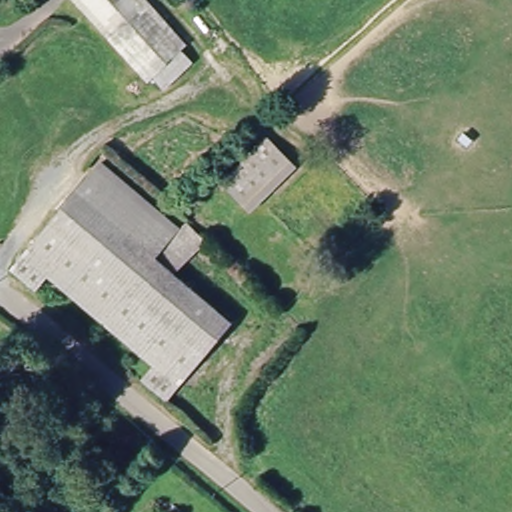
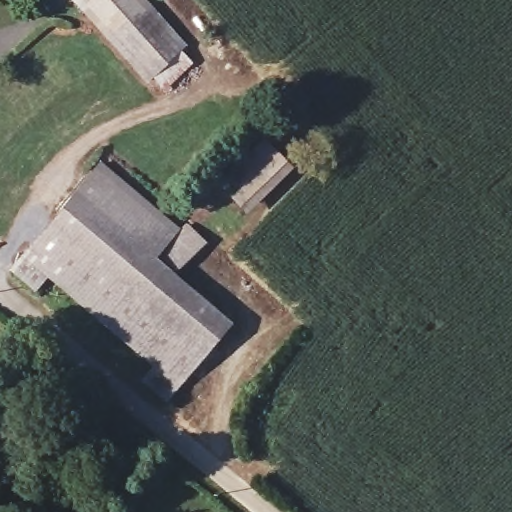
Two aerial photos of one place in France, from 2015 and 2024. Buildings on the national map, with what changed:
unchanged [(151,77),(144,82),(70,0),(145,0),(185,44),(179,50),(192,64),(163,90),(151,77)]
unchanged [(295,170),(248,216),(217,185),(265,138),(295,170)]
unchanged [(102,162),(182,231),(154,257),(78,190),(102,162)]
unchanged [(78,190),(154,257),(182,231),(199,248),(173,273),(230,323),(164,406),(138,385),(151,368),(47,277),(32,295),(5,273),(78,190)]

